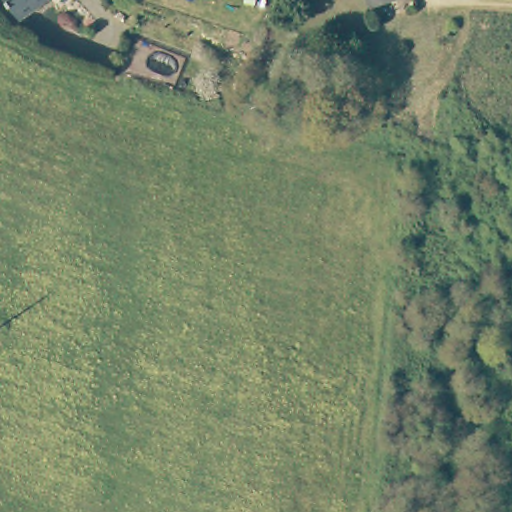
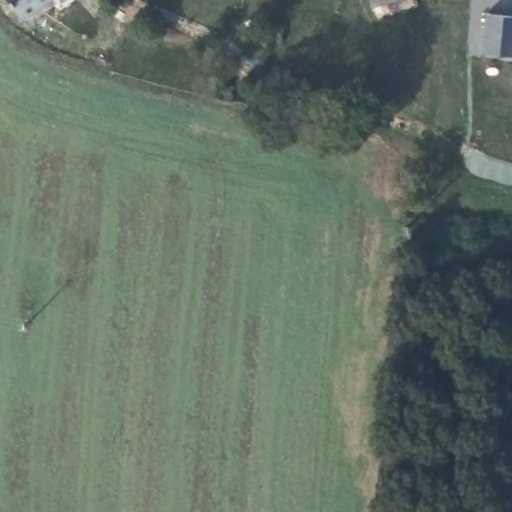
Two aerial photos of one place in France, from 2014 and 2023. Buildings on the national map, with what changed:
unchanged [(15,0),(51,0),(27,17),(15,0)]
unchanged [(372,0),(396,0),(374,7),(372,0)]
new [(483,51),(485,12),(512,15),(512,54),(483,51)]

